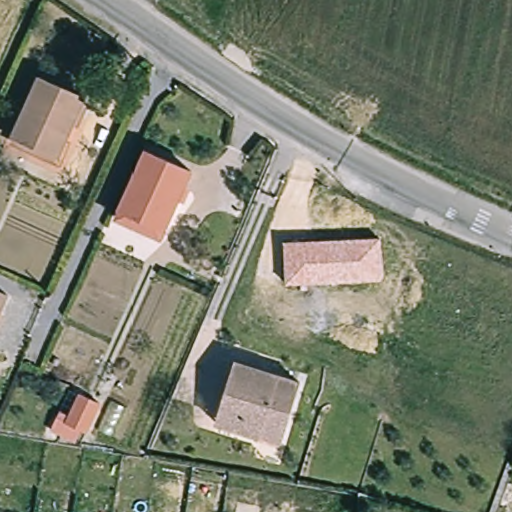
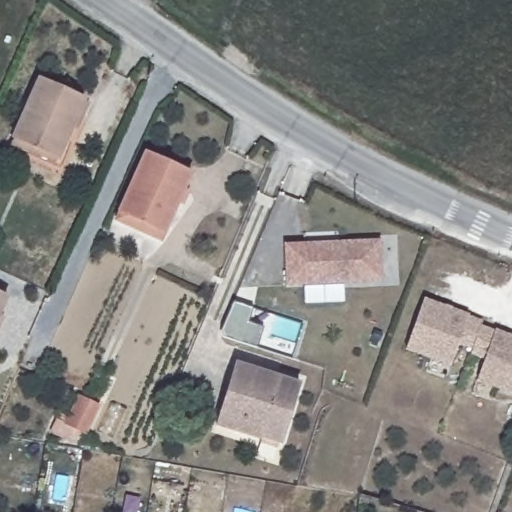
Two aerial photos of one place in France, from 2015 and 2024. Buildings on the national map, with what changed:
unchanged [(57,159),(11,139),(38,79),(83,99),(57,159)]
unchanged [(115,220),(118,212),(144,152),(190,172),(163,232),(159,240),(115,220)]
unchanged [(378,238),(381,280),(288,284),(284,242),(378,238)]
unchanged [(0,294),(5,297),(0,309),(0,294)]
new [(422,300),(481,321),(479,326),(512,338),(512,394),(475,381),(483,360),(469,355),(471,350),(457,345),(449,365),(405,350),(422,300)]
unchanged [(280,443),(259,436),(259,439),(215,425),(235,363),(299,383),(280,443)]
unchanged [(85,434),(64,425),(78,396),(98,405),(85,434)]

